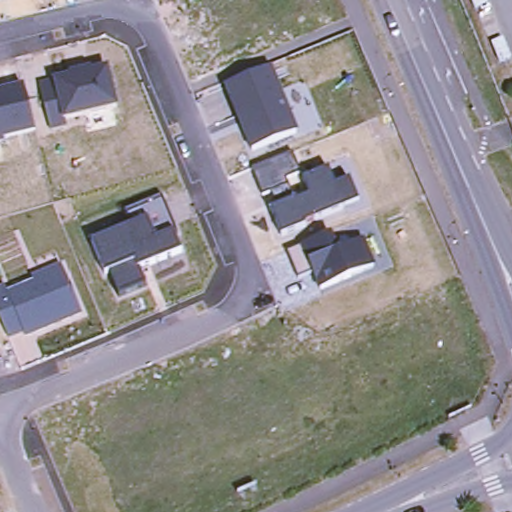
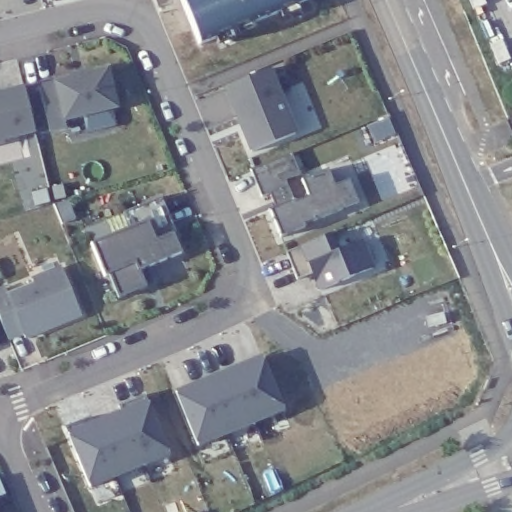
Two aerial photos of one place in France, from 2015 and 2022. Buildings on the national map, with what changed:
new [(200,42),(182,0),(273,0),(278,11),(200,42)]
new [(273,0),(303,0),(278,11),(273,0)]
unchanged [(116,106),(65,119),(67,125),(50,130),(39,86),(71,78),(70,76),(71,75),(72,78),(90,73),(89,71),(90,71),(91,73),(107,69),(116,106)]
unchanged [(270,69),(283,99),(281,99),(296,134),(252,153),(242,129),(245,128),(240,116),(238,118),(225,87),(270,69)]
unchanged [(34,131),(2,138),(3,141),(0,141),(0,93),(24,87),(34,131)]
unchanged [(359,204),(344,210),(314,223),(313,222),(304,225),(305,228),(281,238),(270,212),(268,212),(268,211),(276,208),(270,194),(262,198),(250,170),(292,153),(301,175),(286,181),(295,203),(309,197),(302,181),(328,170),(335,187),(349,181),(359,204)]
new [(46,187),(50,202),(35,206),(31,191),(46,187)]
unchanged [(99,240),(100,241),(129,228),(122,213),(161,196),(178,235),(173,237),(181,254),(139,271),(146,287),(118,300),(107,276),(104,277),(90,244),(99,240)]
unchanged [(320,291),(313,274),(297,280),(285,253),(328,236),(335,253),(352,246),(361,242),(368,257),(372,269),(320,291)]
unchanged [(24,338),(22,333),(7,339),(0,322),(0,289),(5,288),(8,294),(32,284),(31,280),(61,267),(80,314),(61,323),(53,326),(24,338)]
new [(286,412),(200,448),(175,392),(262,355),(286,412)]
new [(147,400),(171,456),(91,488),(68,434),(65,426),(92,415),(95,422),(122,413),(119,406),(144,396),(147,400)]

